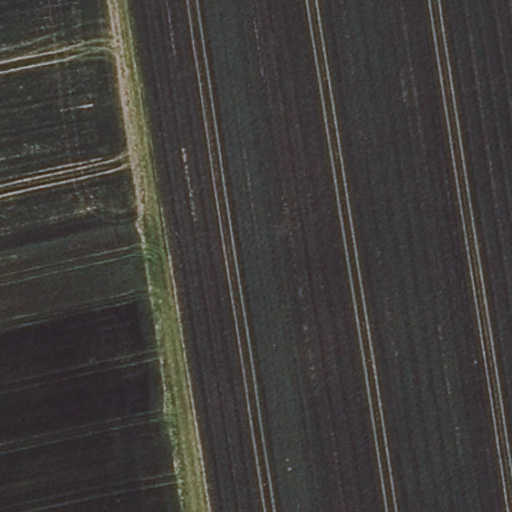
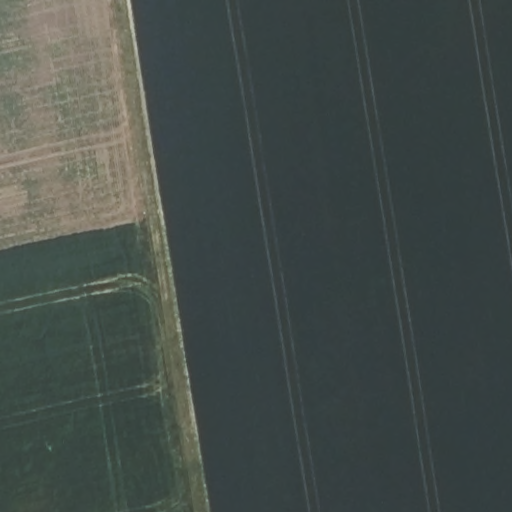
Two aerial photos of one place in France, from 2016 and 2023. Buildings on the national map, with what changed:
[]

